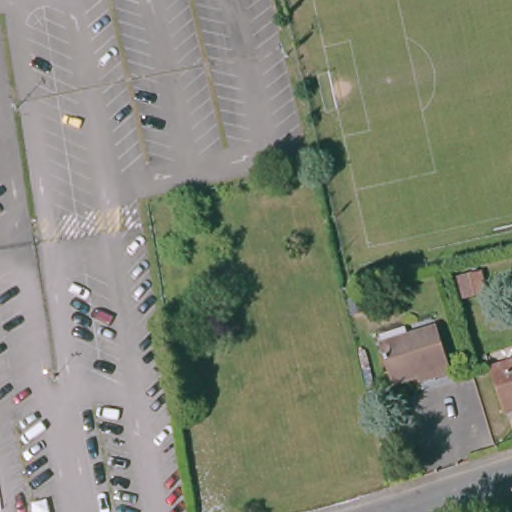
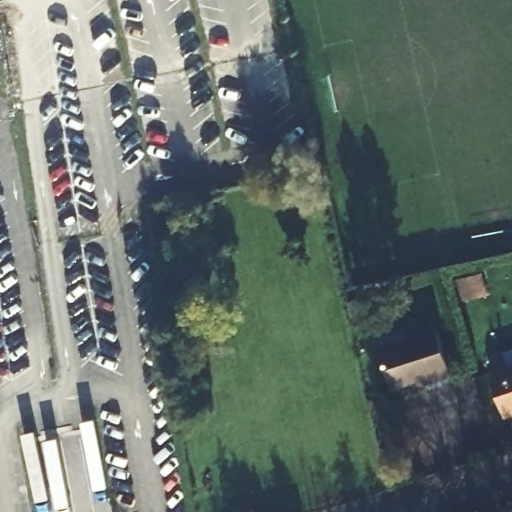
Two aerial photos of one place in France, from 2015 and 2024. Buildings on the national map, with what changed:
unchanged [(442,328),(454,376),(437,379),(437,373),(393,386),(383,341),(442,328)]
unchanged [(512,363),(512,413),(507,414),(493,368),(512,363)]

